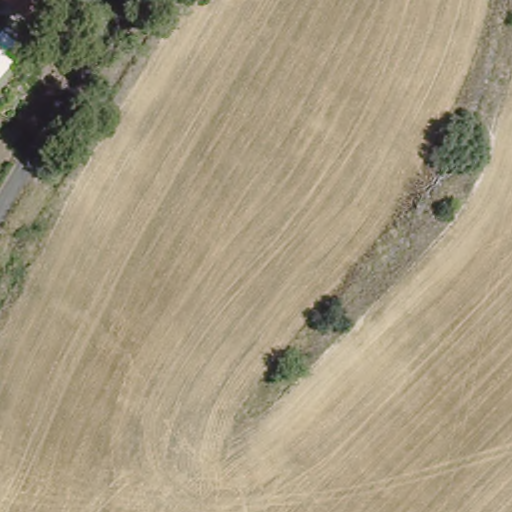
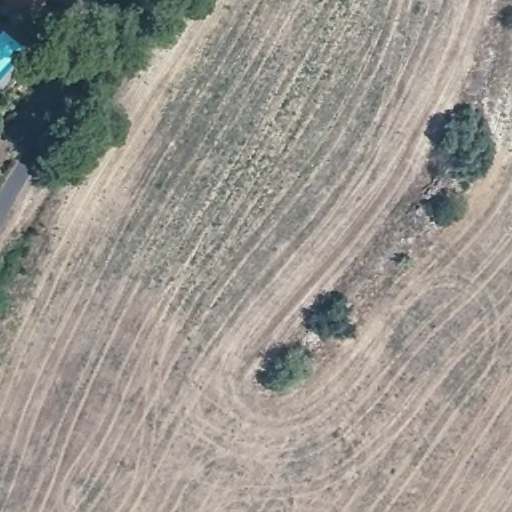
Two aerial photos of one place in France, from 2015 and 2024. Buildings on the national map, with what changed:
unchanged [(31,10),(19,0),(40,0),(31,10)]

